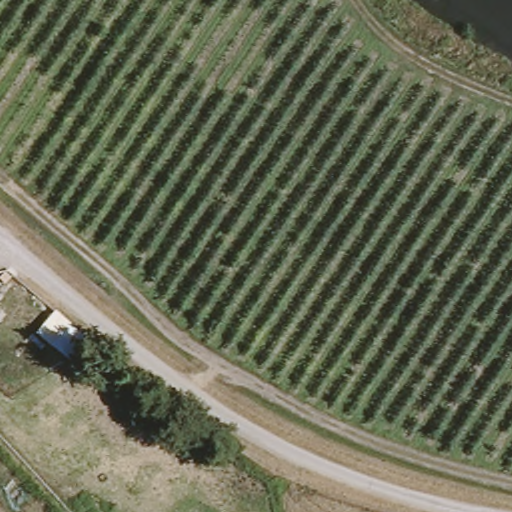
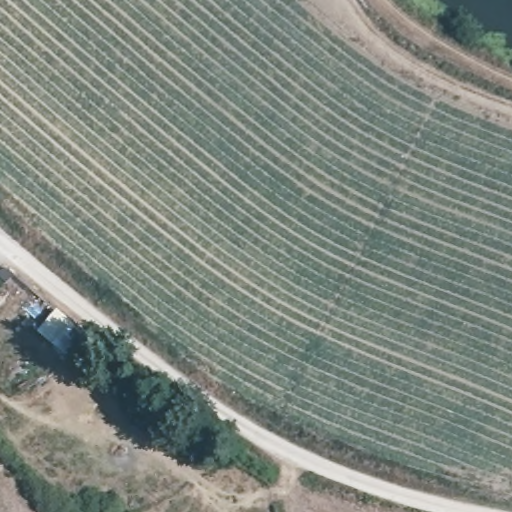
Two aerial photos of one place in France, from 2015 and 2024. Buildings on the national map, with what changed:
unchanged [(55,308),(94,342),(68,365),(32,331),(55,308)]

